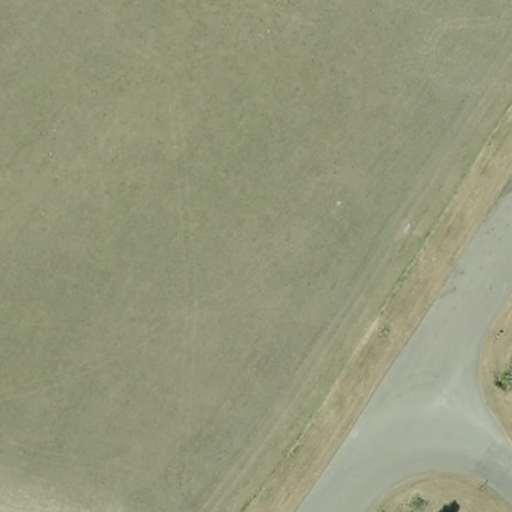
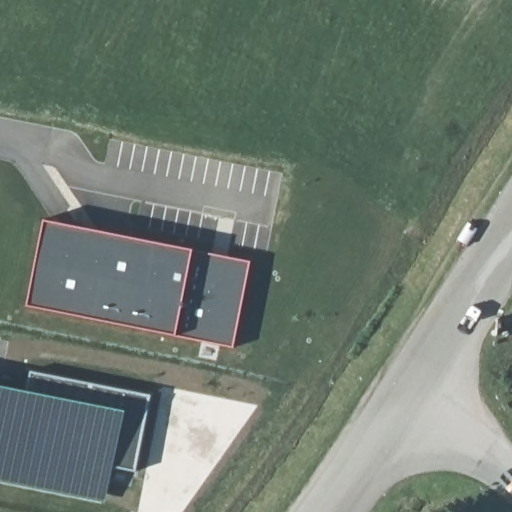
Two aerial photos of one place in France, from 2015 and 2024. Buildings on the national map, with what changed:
new [(40,218),(191,248),(173,337),(22,307),(40,218)]
new [(191,248),(250,260),(233,348),(173,337),(191,248)]
new [(29,375),(147,399),(132,473),(103,466),(99,492),(0,473),(0,393),(25,397),(29,375)]

